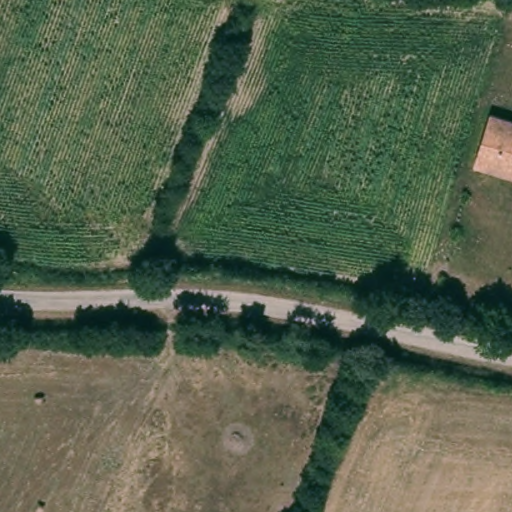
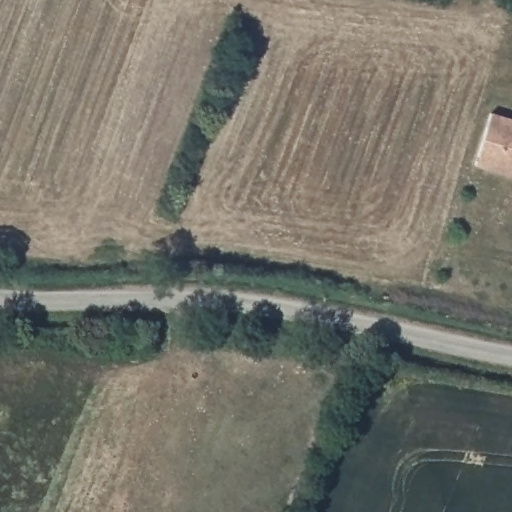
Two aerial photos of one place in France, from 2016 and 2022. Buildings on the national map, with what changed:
unchanged [(476,164),(491,109),(512,116),(512,177),(476,164)]

